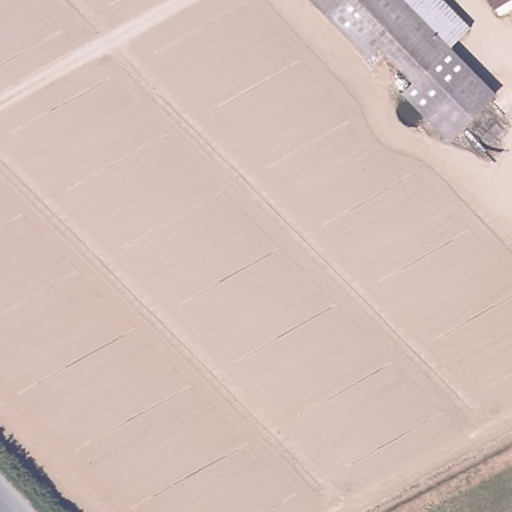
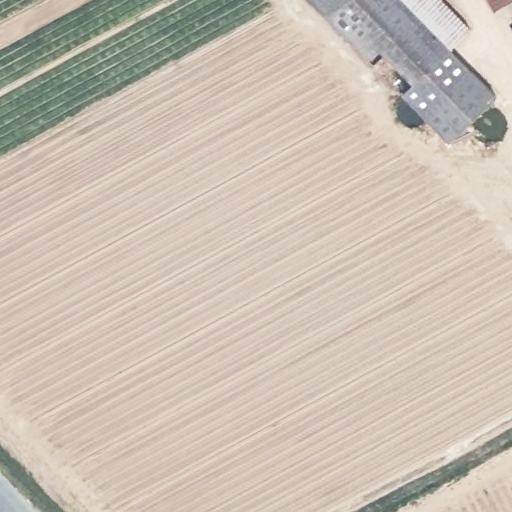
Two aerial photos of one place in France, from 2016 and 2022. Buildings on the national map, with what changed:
unchanged [(328,10),(318,0),(339,0),(328,10)]
unchanged [(453,44),(416,80),(380,43),(370,53),(328,10),(339,0),(405,0),(425,20),(439,7),(464,33),(453,44)]
unchanged [(439,7),(425,20),(405,0),(446,0),(472,26),(464,33),(439,7)]
unchanged [(416,80),(453,44),(454,46),(498,95),(451,140),(405,91),(416,80)]

